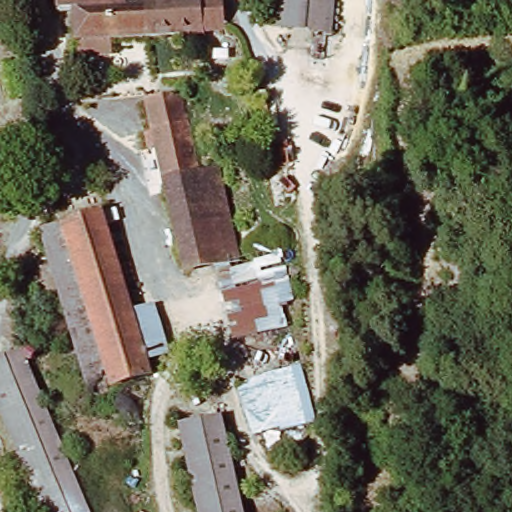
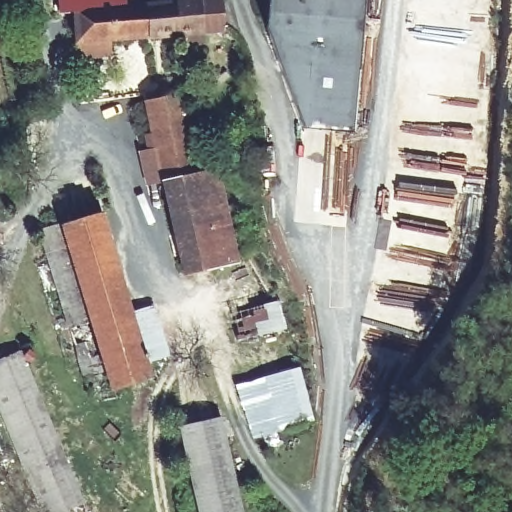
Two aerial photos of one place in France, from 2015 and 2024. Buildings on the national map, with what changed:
unchanged [(209,31),(109,38),(110,51),(79,54),(75,10),(60,11),(59,0),(151,0),(151,4),(187,6),(187,0),(208,0),(209,31)]
new [(352,132),(304,127),(265,26),(268,0),(364,0),(352,132)]
demolished [(334,34),(277,28),(280,0),(337,0),(334,34)]
unchanged [(227,267),(187,275),(150,105),(187,97),(203,175),(225,171),(244,265),(227,267)]
unchanged [(107,213),(139,312),(157,306),(172,355),(152,362),(156,380),(113,390),(66,228),(107,213)]
unchanged [(277,258),(292,331),(243,342),(227,267),(244,265),(277,258)]
unchanged [(0,369),(30,358),(91,512),(51,512),(0,381),(0,369)]
unchanged [(306,370),(323,423),(257,443),(242,387),(306,370)]
unchanged [(224,429),(244,512),(203,512),(185,439),(224,429)]

